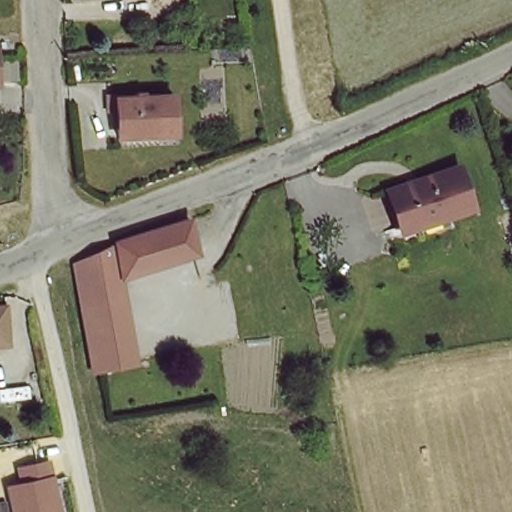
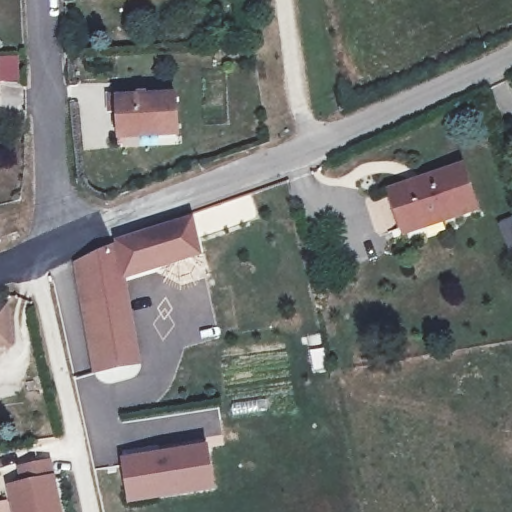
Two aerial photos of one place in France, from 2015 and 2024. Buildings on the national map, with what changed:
unchanged [(115,2),(114,0),(143,0),(115,2)]
unchanged [(1,89),(0,89),(0,62),(1,89)]
unchanged [(179,105),(180,143),(118,147),(116,107),(179,105)]
unchanged [(460,169),(477,211),(443,225),(447,234),(415,247),(409,249),(390,200),(400,195),(460,169)]
unchanged [(181,227),(191,255),(103,288),(130,368),(108,376),(103,360),(96,362),(65,271),(181,227)]
unchanged [(3,305),(7,345),(0,346),(0,306),(3,305)]
new [(210,444),(217,491),(126,504),(119,458),(210,444)]
unchanged [(20,482),(16,466),(52,459),(63,512),(12,512),(6,485),(20,482)]

